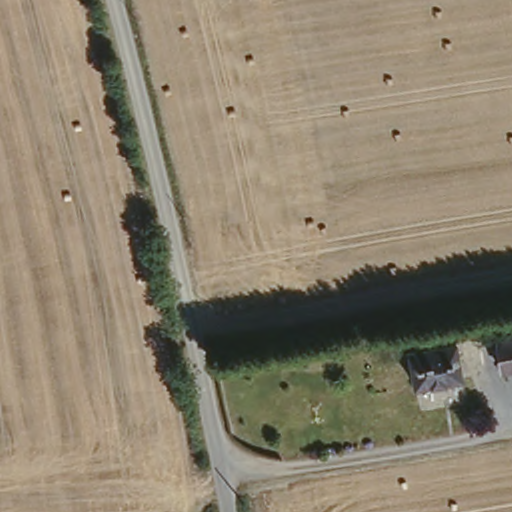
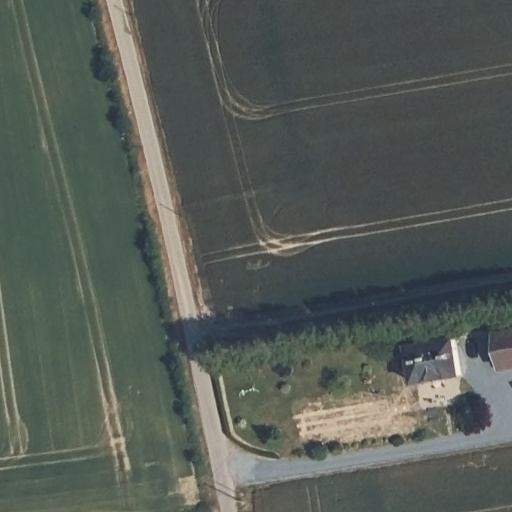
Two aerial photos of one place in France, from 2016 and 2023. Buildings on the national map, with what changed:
unchanged [(512,326),(512,360),(495,363),(490,329),(512,326)]
unchanged [(407,342),(455,334),(461,372),(413,381),(407,342)]

